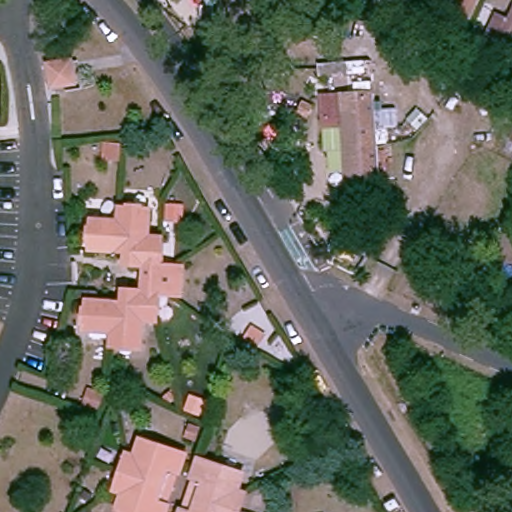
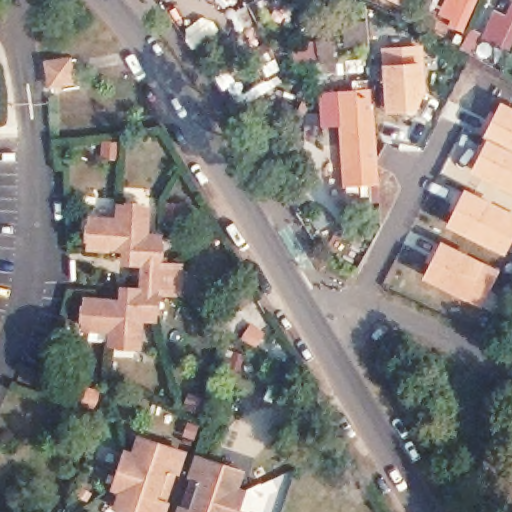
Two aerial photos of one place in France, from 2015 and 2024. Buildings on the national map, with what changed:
new [(404,6),(392,0),(406,0),(404,6)]
new [(422,45),(425,62),(426,92),(416,111),(385,113),(382,66),(380,48),(422,45)]
unchanged [(92,57),(96,84),(69,87),(65,60),(92,57)]
unchanged [(338,95),(346,94),(373,93),(380,183),(355,185),(346,185),(338,95)]
new [(482,138),(500,103),(512,108),(512,195),(510,194),(510,195),(469,174),(486,139),(482,138)]
new [(508,212),(512,213),(512,242),(505,255),(488,249),(445,228),(464,190),(508,212)]
unchanged [(140,196),(144,226),(156,226),(158,250),(182,250),(184,276),(160,278),(161,301),(147,302),(150,331),(122,333),(120,320),(94,322),(91,296),(120,295),(121,303),(130,304),(131,280),(145,279),(143,252),(129,252),(127,228),(116,229),(117,241),(89,243),(86,214),(114,212),(114,198),(140,196)]
new [(440,242),(485,263),(499,271),(481,309),(465,301),(422,280),(440,242)]
unchanged [(252,307),(241,323),(228,314),(237,300),(252,307)]
unchanged [(153,512),(118,498),(124,482),(114,478),(120,463),(126,447),(137,450),(145,432),(189,450),(182,467),(176,483),(170,499),(165,512),(153,512)]
unchanged [(206,450),(250,467),(243,483),(252,488),(247,505),(244,512),(182,512),(188,498),(192,485),(200,467),(206,450)]

